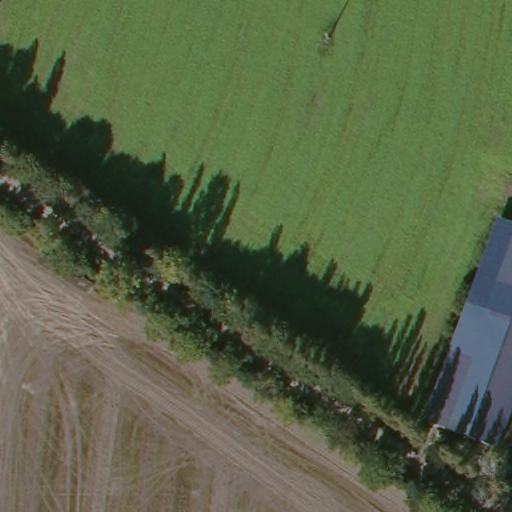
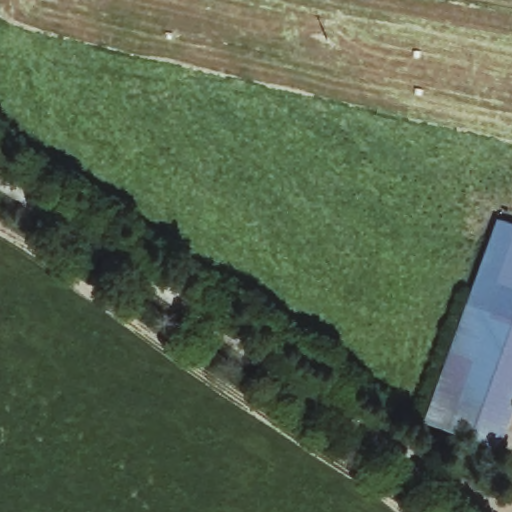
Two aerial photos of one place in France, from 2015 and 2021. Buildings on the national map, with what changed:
unchanged [(496,217),(512,223),(512,324),(463,306),(496,217)]
unchanged [(512,324),(512,400),(493,453),(419,426),(463,306),(512,324)]

